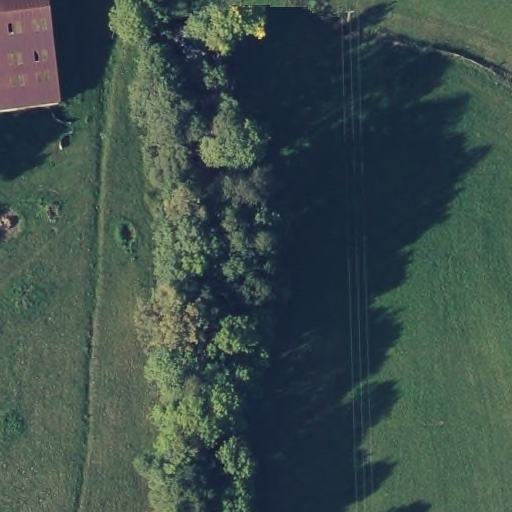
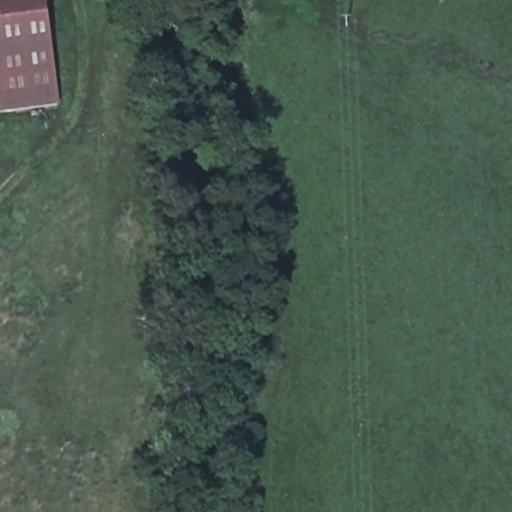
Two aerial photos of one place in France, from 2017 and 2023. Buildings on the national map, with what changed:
unchanged [(57,101),(0,108),(0,0),(45,0),(57,101)]

